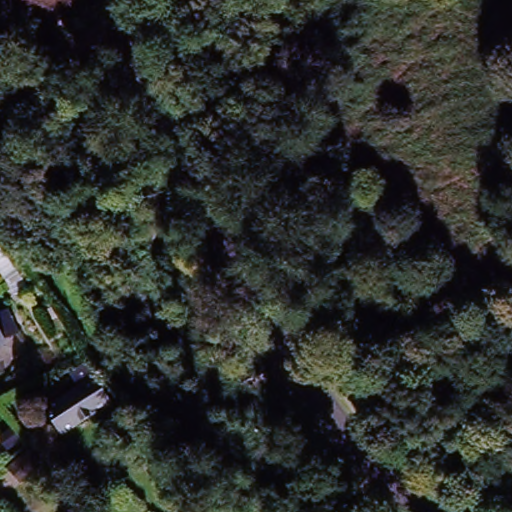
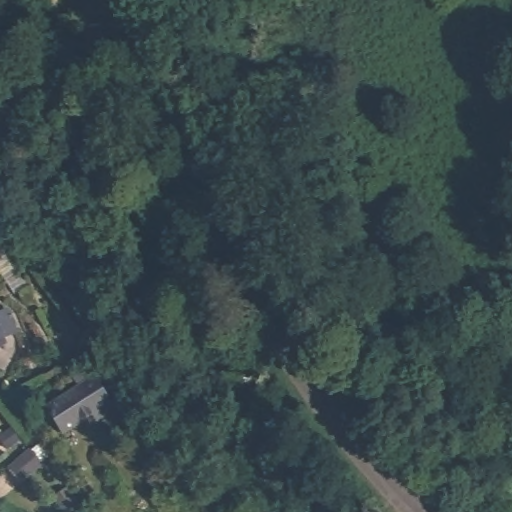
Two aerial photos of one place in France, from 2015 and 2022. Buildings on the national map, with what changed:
unchanged [(0,273),(0,263),(4,271),(0,273)]
unchanged [(16,324),(2,330),(4,335),(0,336),(0,304),(6,301),(16,324)]
unchanged [(92,384),(109,416),(91,425),(87,417),(56,435),(43,410),(92,384)]
unchanged [(26,440),(35,452),(13,468),(4,455),(26,440)]

